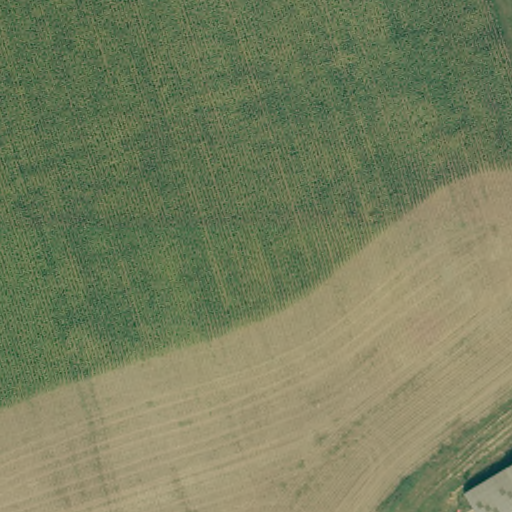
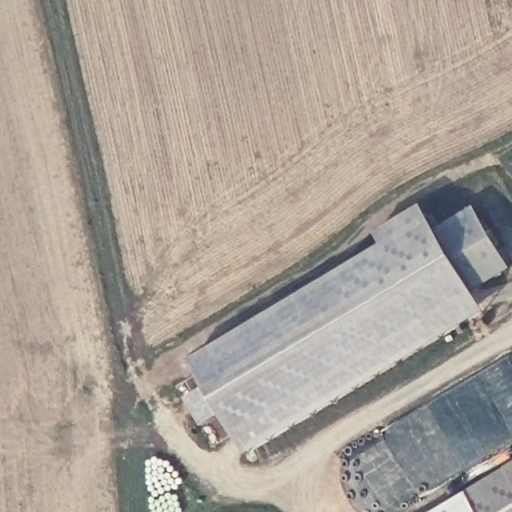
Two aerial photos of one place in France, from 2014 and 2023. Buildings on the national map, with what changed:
new [(220,416),(202,427),(185,400),(205,387),(189,361),(382,245),(375,232),(422,205),(435,229),(474,206),(511,268),(475,292),(487,312),(246,455),(220,416)]
unchanged [(504,470),(512,465),(512,512),(473,512),(462,494),(504,470)]

